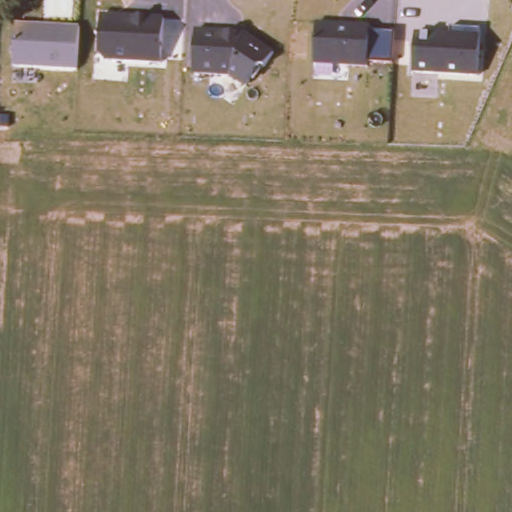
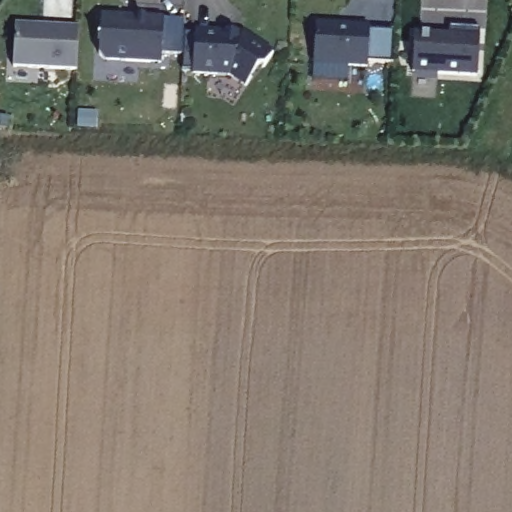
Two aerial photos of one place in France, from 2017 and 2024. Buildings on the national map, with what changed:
unchanged [(161,62),(98,58),(101,14),(163,18),(161,62)]
unchanged [(77,69),(13,64),(15,21),(80,25),(77,69)]
unchanged [(393,63),(368,61),(368,65),(314,63),(317,23),(370,25),(370,29),(395,31),(393,63)]
unchanged [(478,75),(413,71),(415,33),(450,34),(450,25),(480,27),(478,75)]
unchanged [(265,65),(258,67),(246,85),(230,74),(193,72),(195,29),(227,31),(244,32),(248,35),(274,52),(265,65)]

